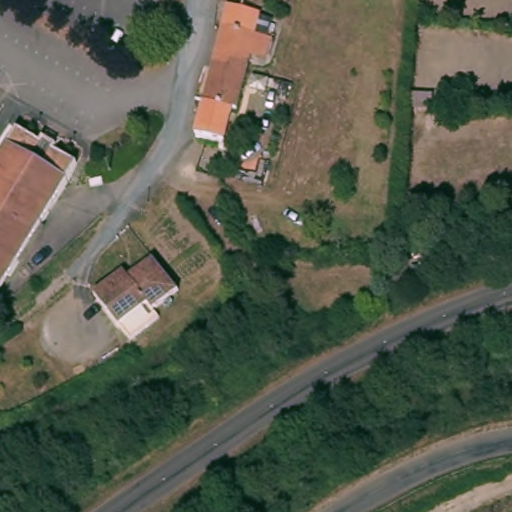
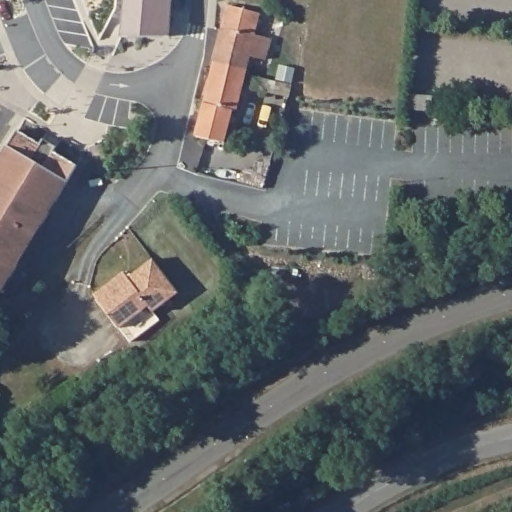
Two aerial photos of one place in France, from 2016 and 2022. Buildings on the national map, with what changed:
new [(125,0),(173,0),(170,35),(121,36),(125,0)]
unchanged [(260,59),(246,55),(241,73),(209,64),(219,27),(225,3),(257,11),(251,34),(267,38),(260,59)]
unchanged [(241,73),(231,110),(226,109),(217,143),(191,136),(209,64),(241,73)]
unchanged [(435,86),(434,111),(405,110),(403,89),(435,86)]
unchanged [(19,125),(42,139),(45,135),(58,143),(56,148),(79,161),(10,273),(0,291),(0,156),(19,125)]
demolished [(132,166),(126,176),(117,169),(124,160),(132,166)]
unchanged [(130,337),(120,322),(95,289),(120,271),(126,267),(130,273),(156,255),(162,264),(180,289),(154,307),(160,315),(130,337)]

